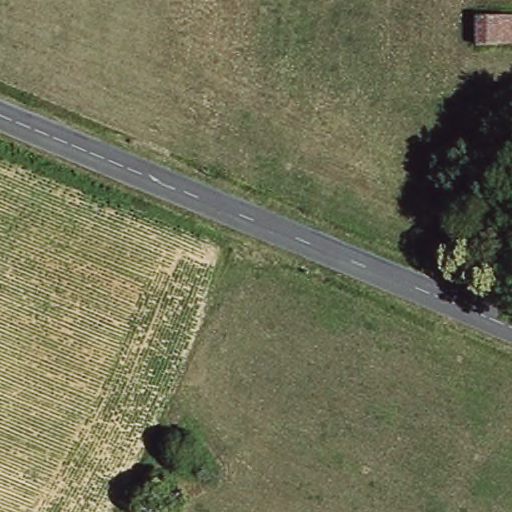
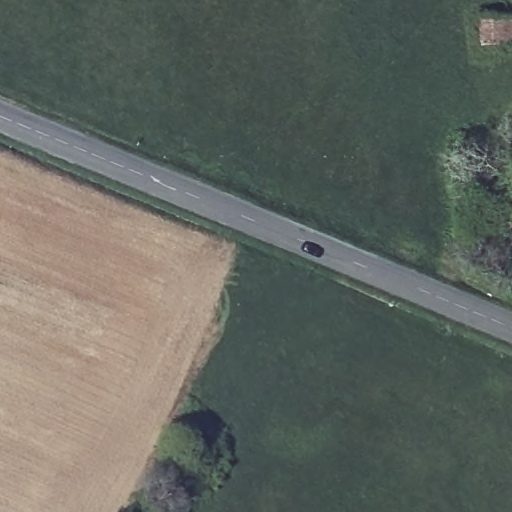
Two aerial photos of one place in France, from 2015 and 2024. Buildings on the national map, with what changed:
unchanged [(475,20),(512,18),(512,50),(477,51),(475,20)]

